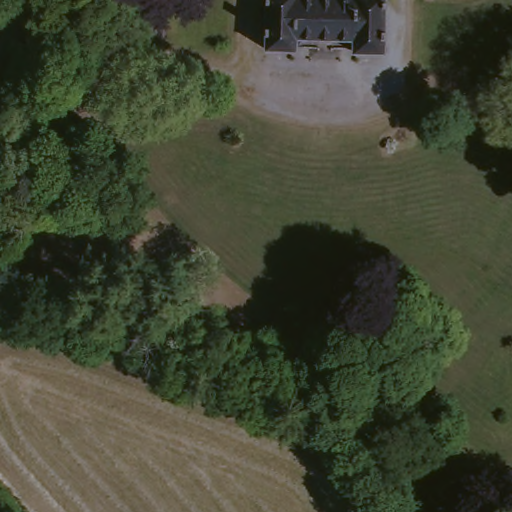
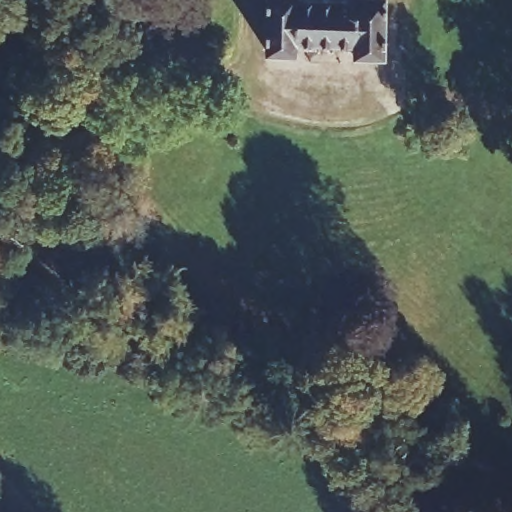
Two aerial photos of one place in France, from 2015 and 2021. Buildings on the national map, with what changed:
unchanged [(386,0),(386,53),(351,53),(352,39),(298,38),(298,51),(265,50),(266,0),(386,0)]

